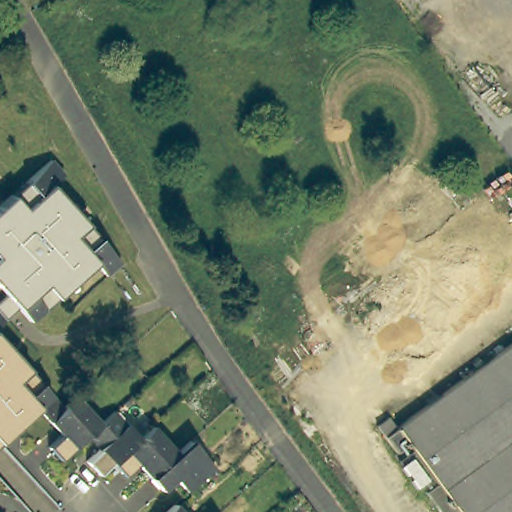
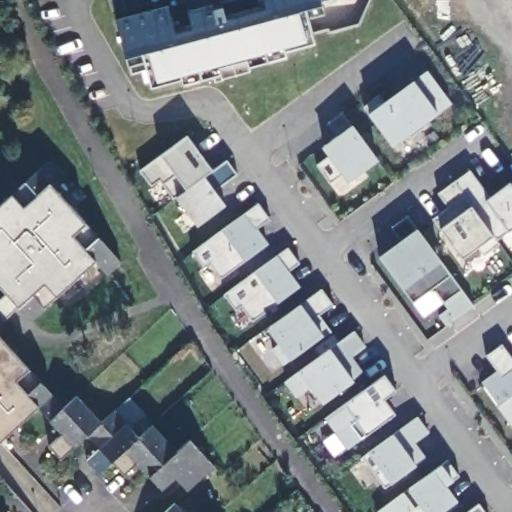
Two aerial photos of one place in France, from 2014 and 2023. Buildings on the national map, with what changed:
new [(177,31),(194,27),(189,11),(211,5),(212,7),(223,3),(227,17),(267,6),(265,0),(323,0),(324,2),(328,18),(312,23),(318,44),(285,53),(268,59),(269,62),(249,67),(222,75),(202,80),(185,85),(184,79),(153,87),(145,66),(129,69),(126,58),(116,19),(168,4),(177,31)]
unchanged [(364,106),(379,95),(385,102),(415,81),(429,70),(453,103),(438,113),(392,146),(369,113),(364,106)]
new [(349,182),(342,172),(330,182),(317,165),(329,156),(322,147),(339,134),(329,124),(343,113),(353,124),(379,159),(349,182)]
new [(176,198),(173,198),(160,178),(152,185),(140,170),(161,154),(187,136),(213,170),(228,162),(237,174),(215,189),(226,206),(198,226),(176,198)]
unchanged [(48,159),(57,170),(60,173),(49,183),(48,185),(117,261),(111,267),(106,271),(105,273),(92,261),(61,289),(28,320),(16,306),(13,309),(6,316),(3,319),(0,316),(0,297),(4,294),(0,290),(0,203),(8,195),(48,159)]
new [(508,229),(497,239),(500,244),(485,255),(479,246),(462,257),(441,227),(434,218),(448,207),(438,193),(470,170),(491,196),(511,182),(512,185),(512,227),(508,229)]
new [(258,203),(270,219),(256,230),(267,245),(221,279),(209,264),(204,268),(192,252),(258,203)]
new [(403,239),(391,228),(407,216),(418,228),(441,261),(461,289),(474,307),(447,326),(438,316),(448,308),(444,301),(425,317),(414,302),(404,289),(379,256),(403,239)]
new [(255,273),(277,256),(289,248),(299,263),(288,271),(299,288),(278,302),(252,321),(242,305),(234,311),(224,294),(255,273)]
unchanged [(302,304),(322,288),(334,305),(319,315),(332,331),(324,337),(292,360),(282,364),(271,349),(278,343),(268,328),(302,304)]
unchanged [(0,316),(3,319),(0,321),(0,316)]
new [(331,349),(355,331),(366,347),(354,356),(365,373),(355,381),(324,403),(311,387),(297,398),(285,382),(299,371),(331,349)]
unchanged [(47,390),(61,406),(48,419),(46,421),(35,409),(25,418),(0,440),(0,340),(27,369),(47,390)]
demolished [(422,491),(435,483),(407,443),(394,452),(382,434),(512,341),(512,512),(437,512),(422,491)]
new [(502,343),(512,358),(512,427),(496,405),(481,384),(498,372),(486,355),(502,343)]
new [(344,405),(388,376),(396,389),(383,398),(395,415),(366,435),(345,447),(325,418),(344,405)]
unchanged [(66,450),(58,458),(46,446),(59,435),(46,421),(48,419),(61,406),(73,396),(98,421),(85,432),(66,450)]
unchanged [(111,458),(95,473),(83,460),(98,446),(86,433),(85,432),(98,421),(110,410),(136,436),(111,458)]
new [(370,452),(394,435),(418,418),(430,433),(416,444),(426,458),(417,465),(391,484),(385,489),(363,459),(370,452)]
unchanged [(136,436),(149,424),(174,451),(148,474),(140,466),(135,460),(122,472),(111,458),(136,436)]
unchanged [(148,474),(174,451),(186,439),(211,467),(186,489),(173,475),(160,487),(151,477),(148,474)]
new [(409,490),(443,466),(449,461),(462,477),(454,483),(449,487),(460,501),(444,512),(379,512),(409,490)]
new [(483,512),(469,512),(479,505),(483,512)]
unchanged [(170,509),(174,507),(178,512),(167,512),(170,509)]

